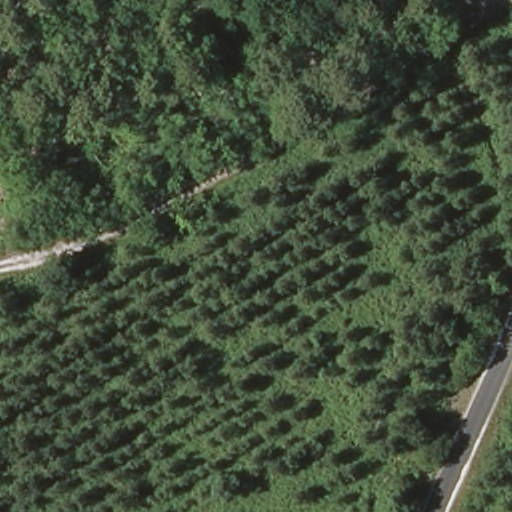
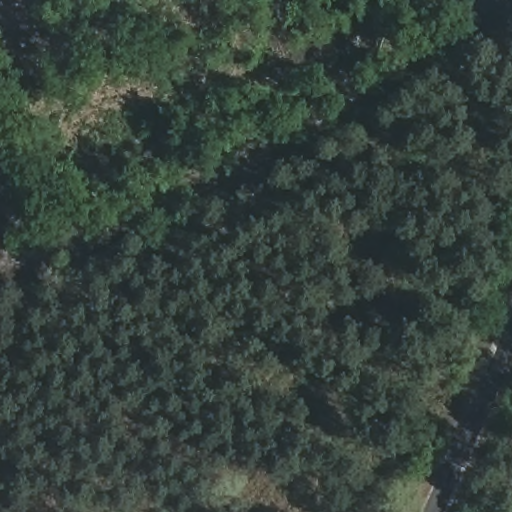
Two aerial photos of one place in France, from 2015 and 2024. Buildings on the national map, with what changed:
unchanged [(249,32),(252,46),(237,49),(233,35),(249,32)]

